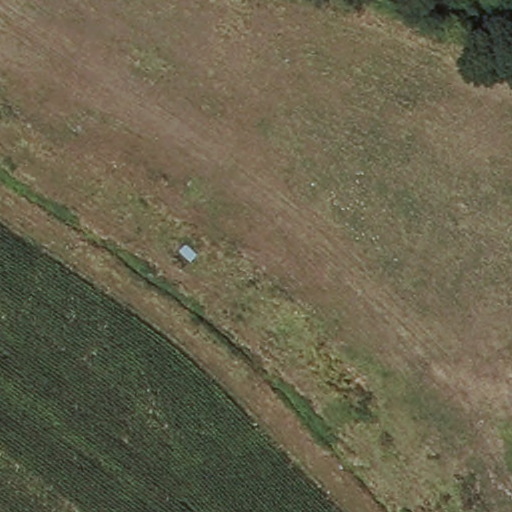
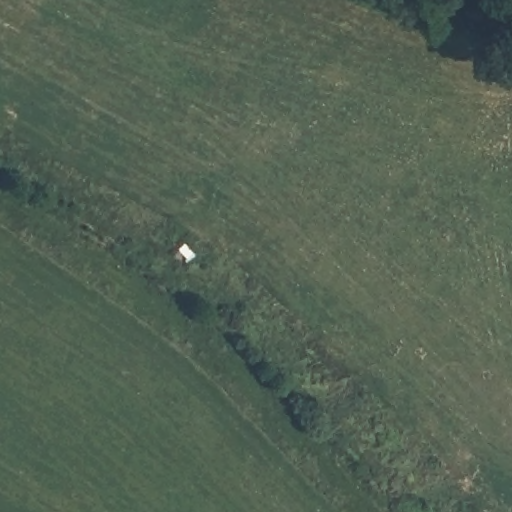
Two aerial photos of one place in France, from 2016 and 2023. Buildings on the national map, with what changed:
[]

